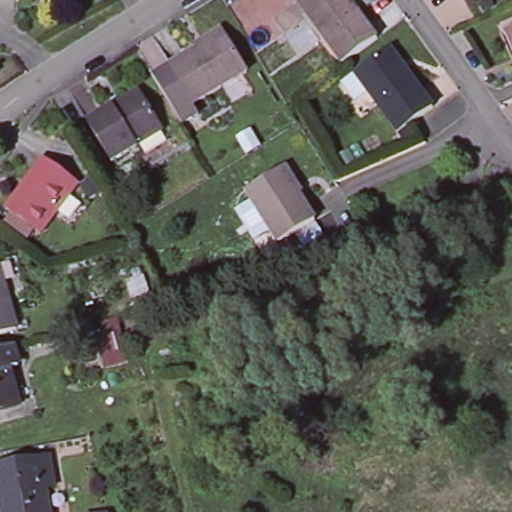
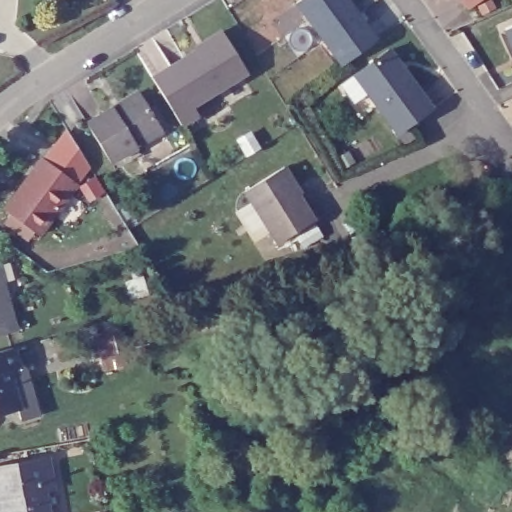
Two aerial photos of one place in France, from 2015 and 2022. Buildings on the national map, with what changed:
unchanged [(348,0),(378,37),(344,63),(296,2),(299,0),(348,0)]
unchanged [(456,0),(459,0),(457,1),(456,0)]
unchanged [(497,27),(505,23),(512,20),(512,60),(497,27)]
unchanged [(203,42),(229,26),(233,32),(255,65),(200,98),(207,108),(192,116),(162,67),(175,59),(203,42)]
unchanged [(387,51),(431,109),(397,134),(354,77),(387,51)]
unchanged [(113,162),(85,119),(112,101),(135,86),(139,91),(162,129),(113,162)]
unchanged [(78,181),(40,231),(7,206),(44,155),(78,181)]
unchanged [(245,189),(281,168),(287,165),(298,183),(292,186),(297,196),(300,195),(316,221),(279,243),(270,229),(255,237),(238,209),(252,200),(245,189)]
unchanged [(0,330),(0,287),(10,328),(0,330)]
unchanged [(20,369),(10,372),(19,405),(0,411),(0,351),(14,347),(20,369)]
unchanged [(52,487),(43,488),(47,512),(0,512),(0,469),(46,460),(52,487)]

